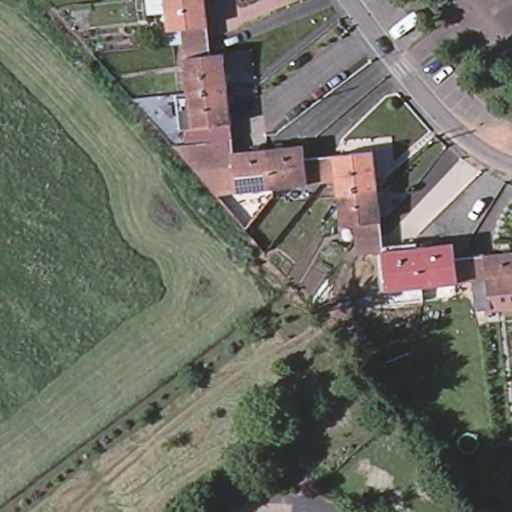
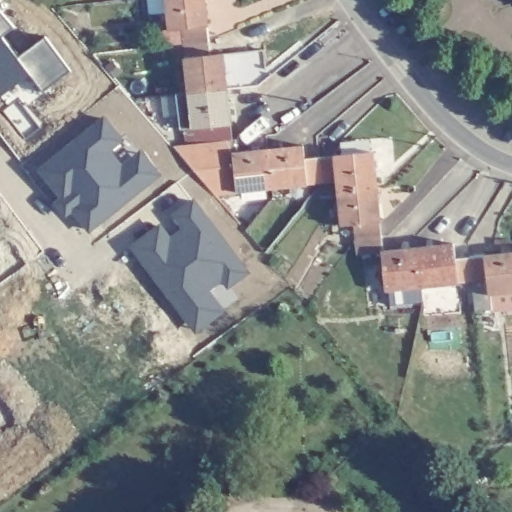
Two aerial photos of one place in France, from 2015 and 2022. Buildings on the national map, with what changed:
unchanged [(180,55),(178,40),(177,25),(162,26),(160,6),(147,8),(146,0),(200,0),(202,22),(205,37),(206,51),(219,50),(222,84),(183,89),(180,55)]
new [(10,27),(0,35),(0,15),(10,27)]
new [(18,60),(45,42),(73,74),(43,93),(32,77),(0,101),(0,36),(18,60)]
unchanged [(268,185),(232,187),(210,190),(168,141),(202,137),(200,122),(187,124),(183,89),(222,84),(225,120),(227,135),(228,149),(263,144),(268,185)]
new [(104,115),(123,145),(112,154),(124,167),(145,152),(162,177),(90,234),(73,215),(67,220),(55,205),(60,200),(37,172),(104,115)]
unchanged [(372,183),(332,188),(331,177),(317,179),(302,180),(268,185),(263,144),(297,140),(300,155),(314,154),(329,152),(368,147),(372,183)]
unchanged [(377,250),(352,252),(350,236),(349,221),(337,222),(332,188),(372,183),(375,218),(377,233),(378,248),(413,245),(448,241),(450,255),(465,254),(480,252),(512,249),(512,288),(483,291),(482,276),(467,278),(452,280),(416,285),(412,300),(378,303),(376,287),(380,287),(377,250)]
new [(160,225),(172,239),(181,230),(172,220),(193,200),(251,274),(227,290),(223,283),(209,293),(224,311),(195,333),(128,252),(160,225)]
new [(3,416),(0,418),(0,411),(3,416)]

